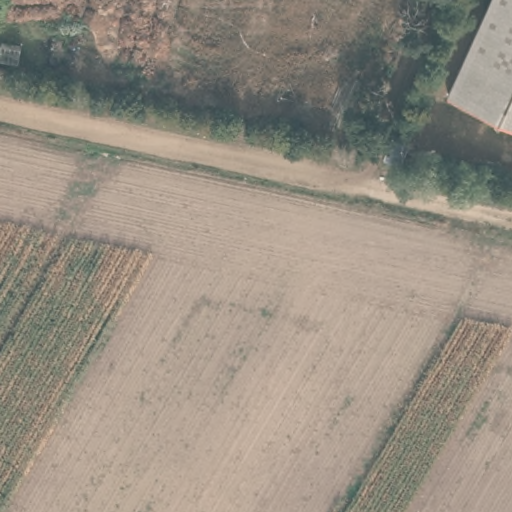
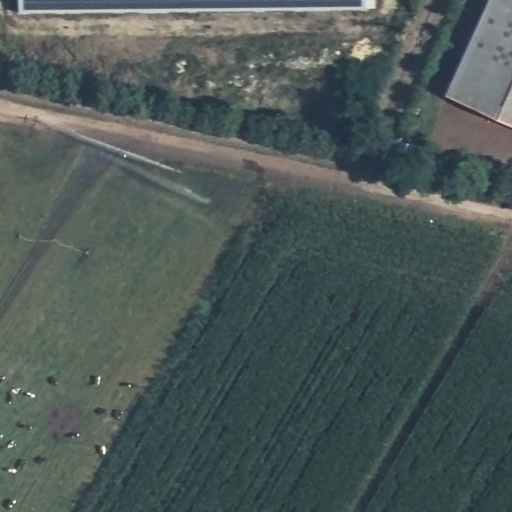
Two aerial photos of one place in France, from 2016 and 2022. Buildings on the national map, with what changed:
new [(20,12),(20,0),(376,0),(377,7),(366,9),(20,12)]
unchanged [(490,0),(512,0),(512,125),(447,96),(490,0)]

